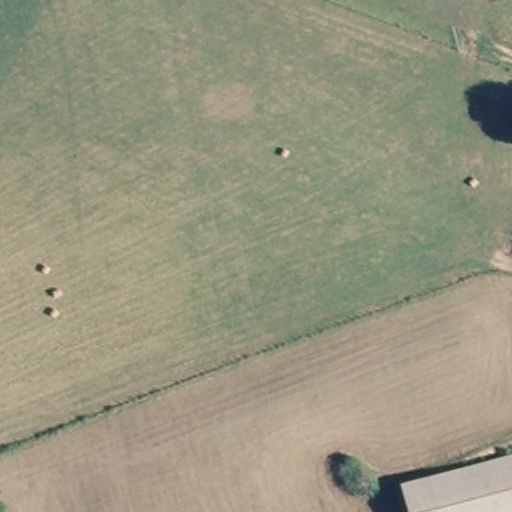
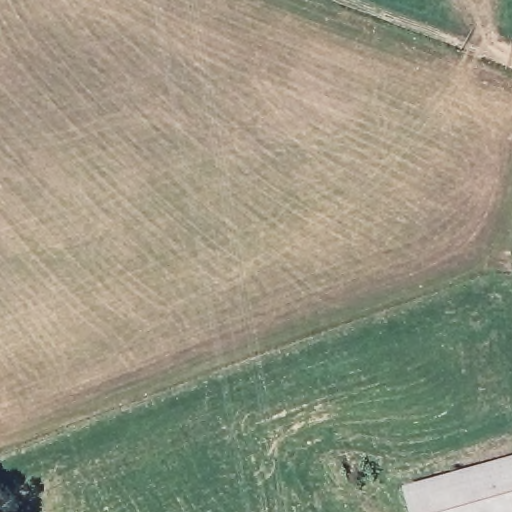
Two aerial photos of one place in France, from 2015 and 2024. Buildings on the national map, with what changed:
unchanged [(402,489),(466,472),(512,461),(512,512),(407,512),(402,489)]

